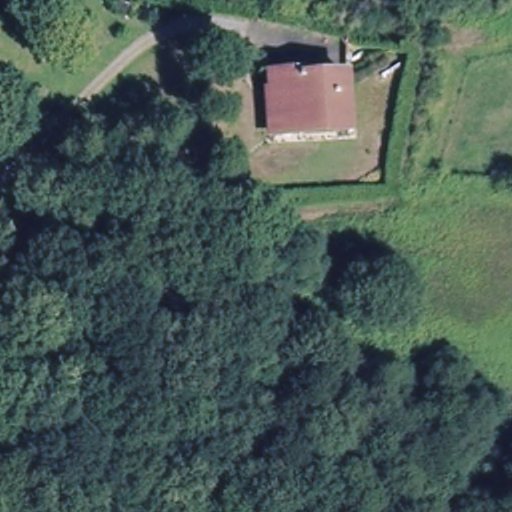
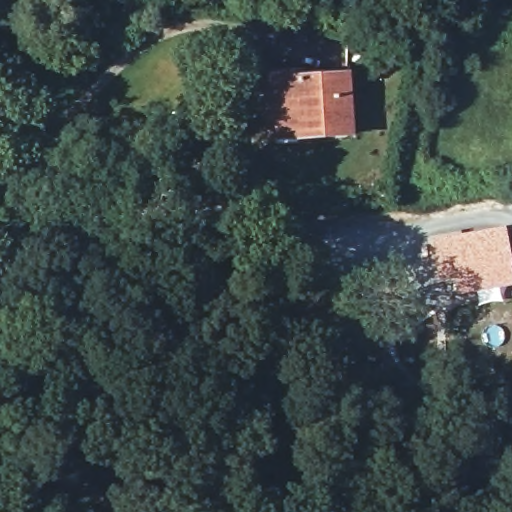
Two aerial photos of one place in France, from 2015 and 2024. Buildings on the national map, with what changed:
unchanged [(297,69),(299,78),(345,75),(348,128),(297,131),(297,123),(272,125),(268,70),(297,69)]
new [(512,263),(512,286),(456,294),(453,278),(439,280),(431,238),(506,226),(512,263)]

